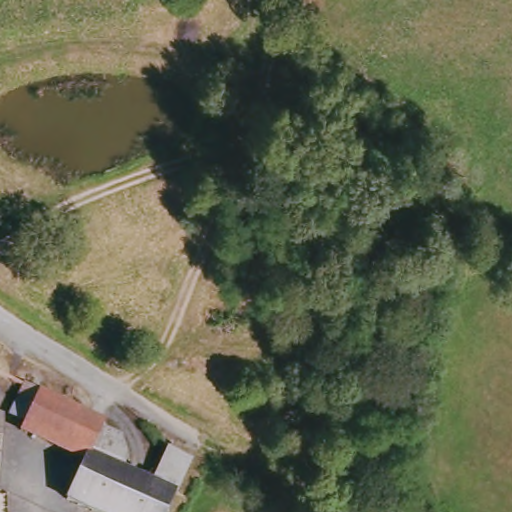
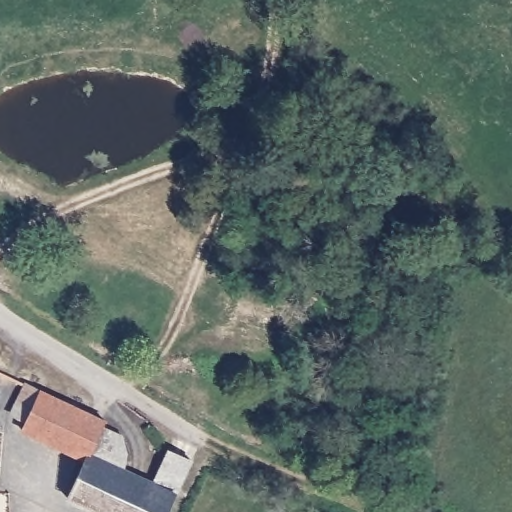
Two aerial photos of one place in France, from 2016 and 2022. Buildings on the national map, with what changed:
unchanged [(70,498),(85,461),(24,434),(29,423),(13,417),(31,384),(45,388),(110,419),(106,427),(135,440),(131,467),(160,481),(172,450),(197,460),(173,512),(99,512),(70,498)]

